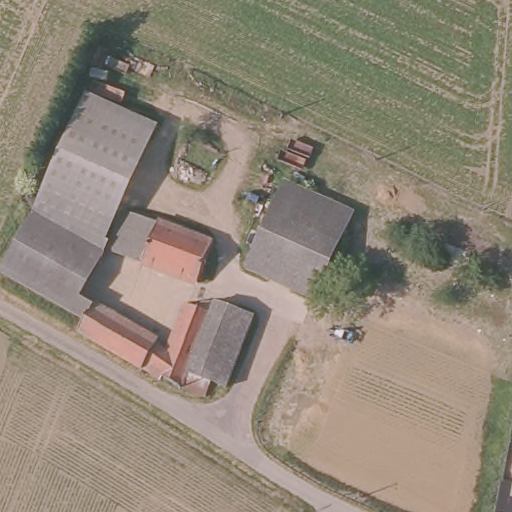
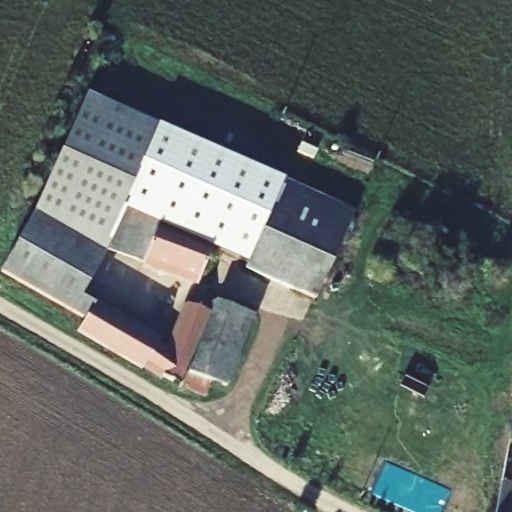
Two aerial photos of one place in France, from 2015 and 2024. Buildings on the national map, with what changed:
unchanged [(102,249),(98,254),(28,214),(84,91),(157,125),(117,209),(102,249)]
new [(280,181),(244,261),(207,244),(117,209),(157,125),(280,181)]
unchanged [(310,299),(241,268),(280,181),(348,212),(310,299)]
unchanged [(191,284),(102,249),(117,209),(207,244),(191,284)]
unchanged [(0,263),(28,214),(98,254),(74,296),(66,311),(0,274),(0,263)]
unchanged [(139,365),(137,369),(72,331),(79,318),(66,311),(74,296),(152,341),(139,365)]
unchanged [(165,349),(182,303),(192,307),(195,300),(210,300),(249,314),(222,386),(206,381),(199,395),(176,386),(157,376),(156,377),(139,365),(152,341),(165,349)]
unchanged [(512,489),(512,512),(491,512),(496,485),(512,489)]

